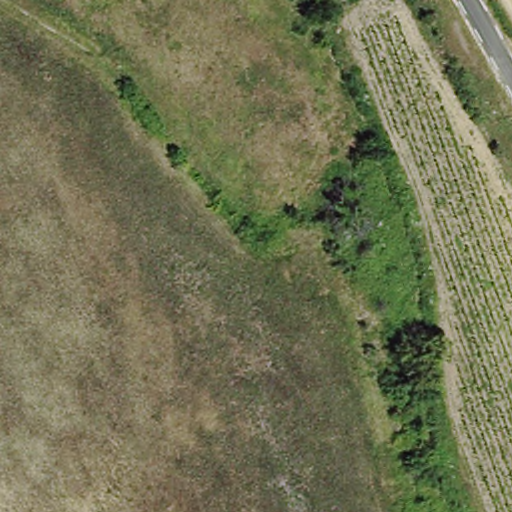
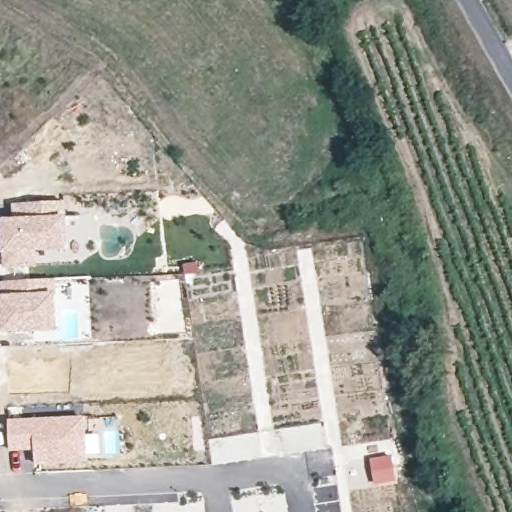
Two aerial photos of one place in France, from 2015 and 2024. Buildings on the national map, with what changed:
new [(11,216),(11,202),(67,199),(67,250),(36,251),(37,265),(2,267),(0,217),(11,216)]
new [(58,331),(0,332),(0,281),(56,278),(58,331)]
new [(35,465),(34,450),(10,451),(8,420),(85,416),(87,462),(35,465)]

